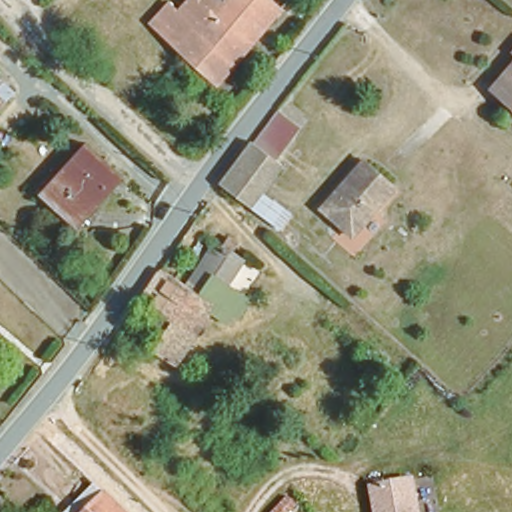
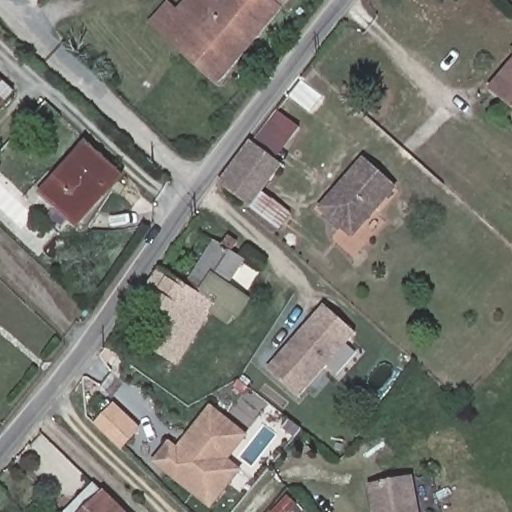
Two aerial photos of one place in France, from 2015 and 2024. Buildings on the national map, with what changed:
unchanged [(224,0),(226,0),(229,4),(223,12),(253,39),(218,79),(168,35),(149,19),(166,0),(168,0),(178,9),(185,0),(217,0),(221,4),(224,0)]
unchanged [(223,12),(229,4),(226,0),(287,0),(253,39),(223,12)]
unchanged [(509,45),(512,40),(512,48),(509,45)]
unchanged [(490,83),(512,56),(512,101),(490,83)]
unchanged [(0,100),(0,78),(11,89),(0,100)]
unchanged [(292,84),(304,95),(275,132),(283,138),(272,152),(250,135),(292,84)]
unchanged [(276,226),(245,201),(217,177),(250,135),(272,152),(279,157),(259,182),(289,208),(276,226)]
unchanged [(83,229),(74,222),(39,189),(85,142),(115,171),(120,176),(83,229)]
unchanged [(342,226),(320,209),(338,189),(341,184),(342,183),(363,160),(394,187),(362,225),(353,237),(342,226)]
unchanged [(245,265),(178,367),(154,352),(163,337),(136,320),(132,326),(127,323),(149,295),(165,273),(179,282),(206,241),(245,265)]
new [(267,370),(324,306),(357,335),(299,399),(267,370)]
new [(211,405),(249,436),(229,460),(243,470),(212,511),(152,463),(170,440),(178,446),(211,405)]
new [(113,406),(141,427),(120,449),(94,426),(113,406)]
unchanged [(368,482),(414,474),(420,512),(373,512),(368,482)]
unchanged [(124,512),(77,512),(97,490),(124,512)]

